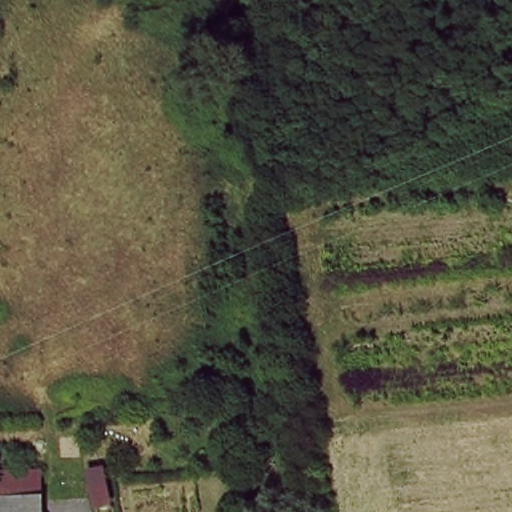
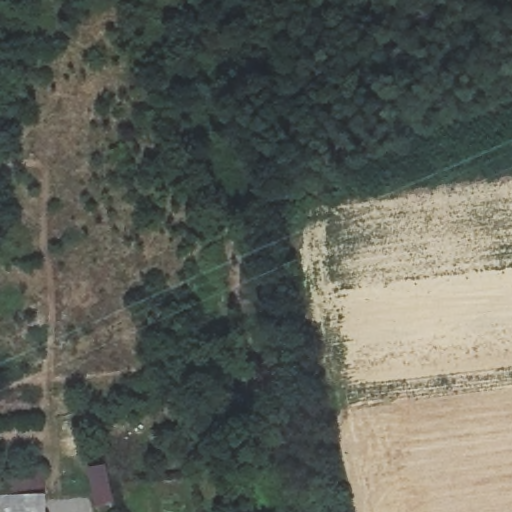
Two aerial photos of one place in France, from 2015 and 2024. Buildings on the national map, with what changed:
unchanged [(49,467),(48,494),(48,502),(48,512),(0,512),(0,494),(1,466),(49,467)]

